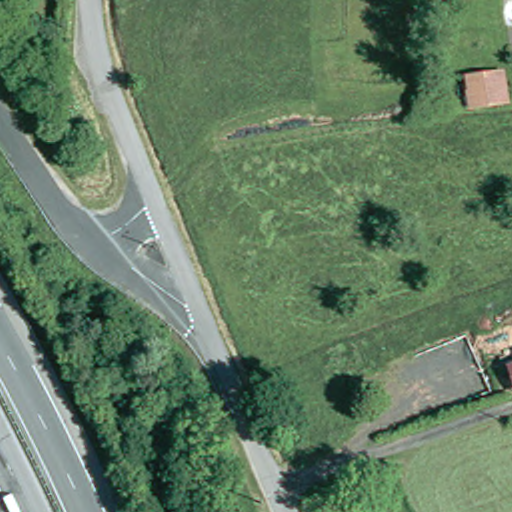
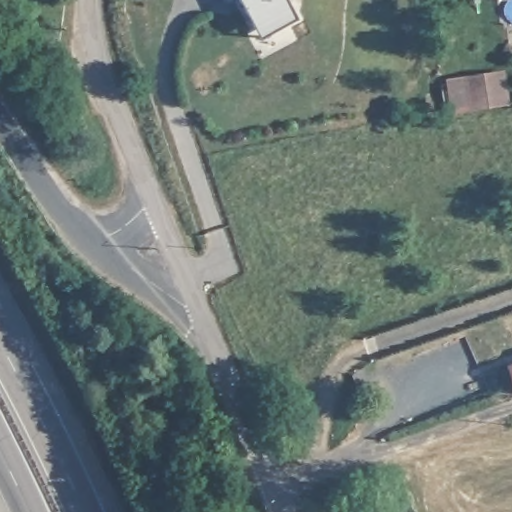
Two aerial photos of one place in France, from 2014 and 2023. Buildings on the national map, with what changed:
new [(226,1),(226,0),(229,0),(226,1)]
new [(298,17),(261,36),(241,0),(288,0),(298,17)]
unchanged [(506,72),(509,104),(468,109),(463,77),(506,72)]
unchanged [(512,362),(512,379),(506,364),(512,362)]

